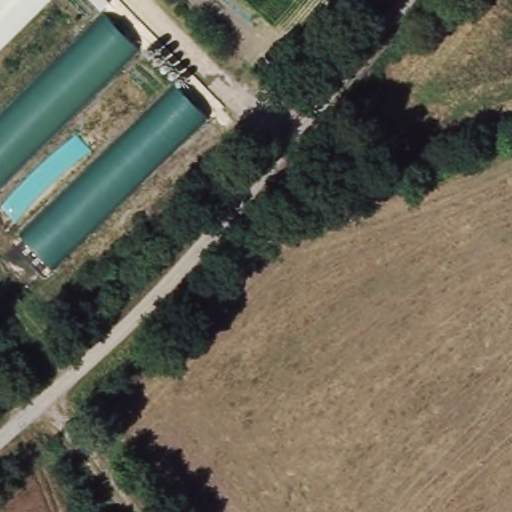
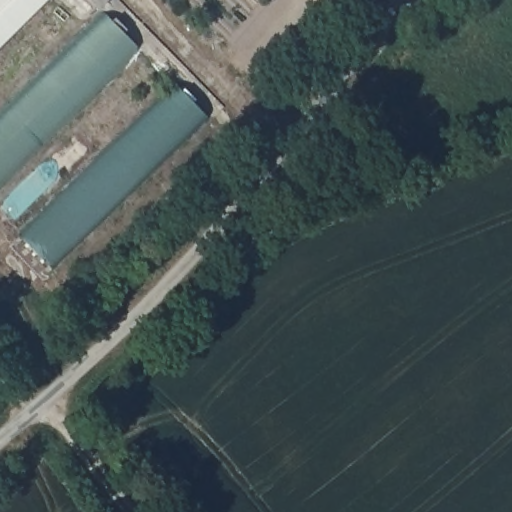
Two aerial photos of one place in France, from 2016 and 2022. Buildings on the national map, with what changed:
unchanged [(55,0),(0,51),(0,0),(55,0)]
unchanged [(109,21),(140,55),(0,186),(0,120),(109,21)]
unchanged [(181,84),(212,119),(53,268),(20,233),(181,84)]

